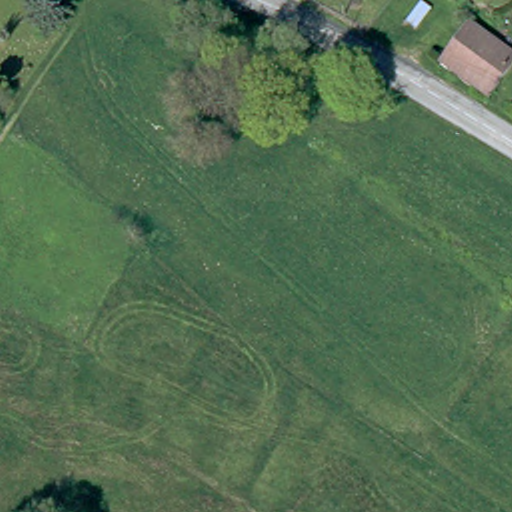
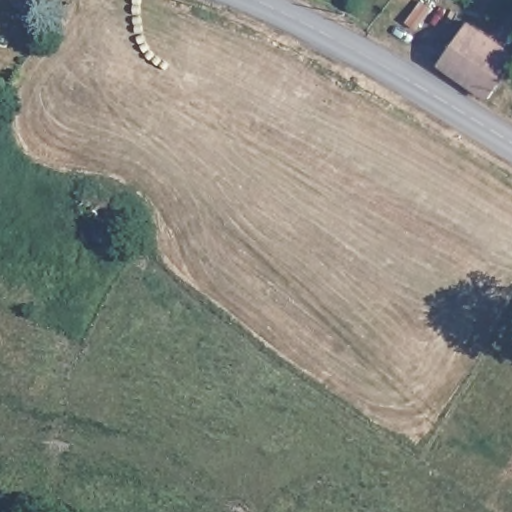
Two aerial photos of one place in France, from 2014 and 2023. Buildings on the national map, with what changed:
unchanged [(512,58),(486,94),(437,57),(468,18),(512,55),(512,58)]

